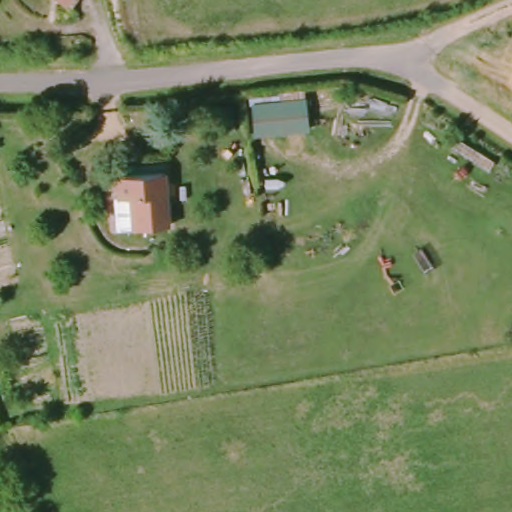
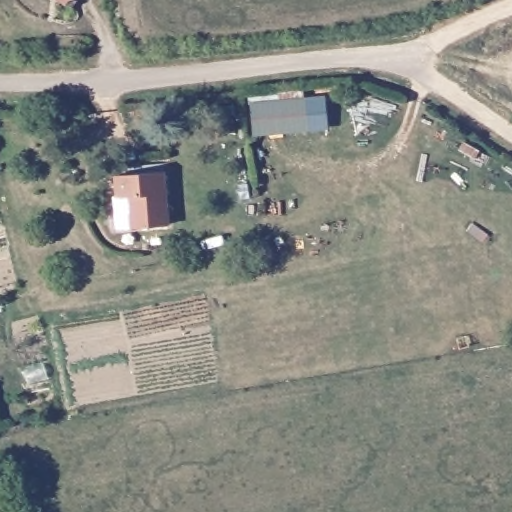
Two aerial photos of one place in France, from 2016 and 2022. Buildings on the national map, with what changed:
unchanged [(67,0),(64,4),(59,0),(67,0)]
unchanged [(253,138),(250,102),(306,96),(309,132),(253,138)]
unchanged [(169,224),(131,228),(127,202),(114,203),(112,179),(162,173),(169,224)]

